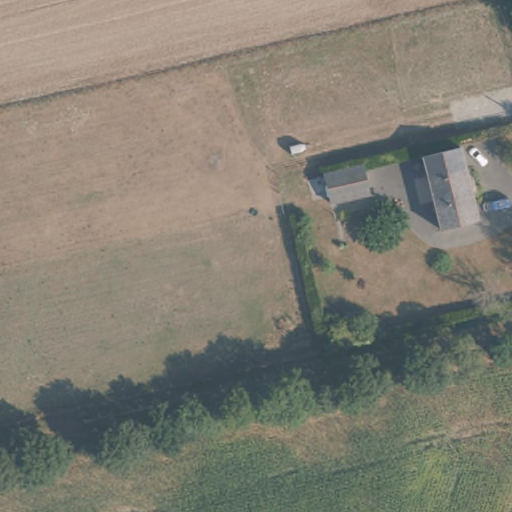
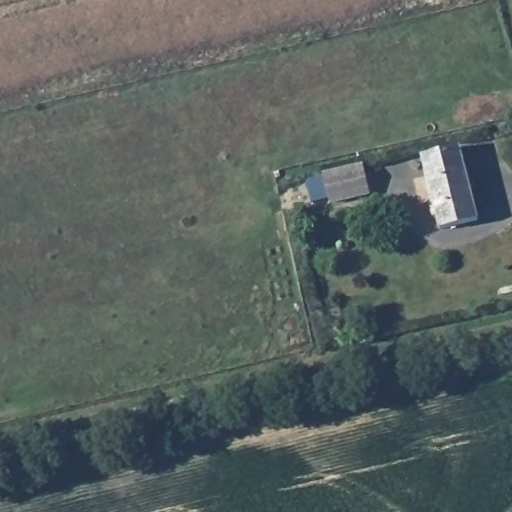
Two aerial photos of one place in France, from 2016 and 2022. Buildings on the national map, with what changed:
unchanged [(423,162),(460,153),(475,219),(441,229),(423,162)]
unchanged [(362,194),(324,201),(319,175),(358,166),(362,194)]

